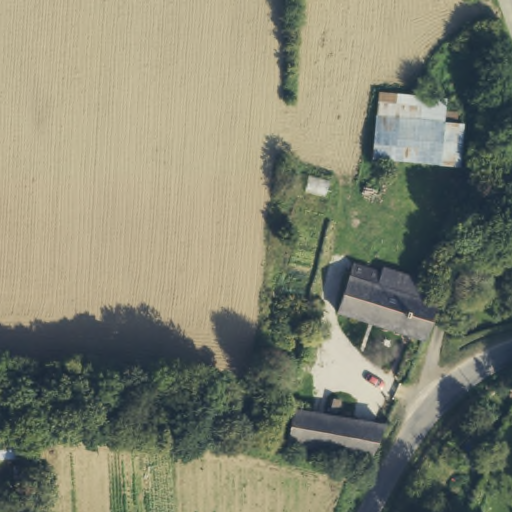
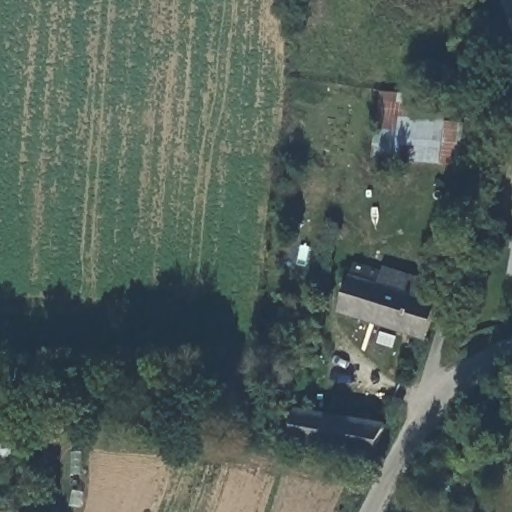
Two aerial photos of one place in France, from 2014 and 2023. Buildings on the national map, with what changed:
unchanged [(377,92),(444,99),(442,122),(461,124),(457,165),(372,157),(376,115),(377,92)]
unchanged [(341,311),(357,262),(385,272),(387,267),(433,282),(428,298),(382,283),(371,320),(341,311)]
unchanged [(371,320),(382,283),(428,298),(438,302),(427,338),(371,320)]
unchanged [(284,367),(287,373),(287,381),(281,385),(272,384),(268,378),(267,372),(272,367),(277,365),(284,367)]
unchanged [(288,444),(292,409),(382,424),(367,457),(288,444)]
unchanged [(16,425),(20,455),(0,456),(0,426),(16,425)]

